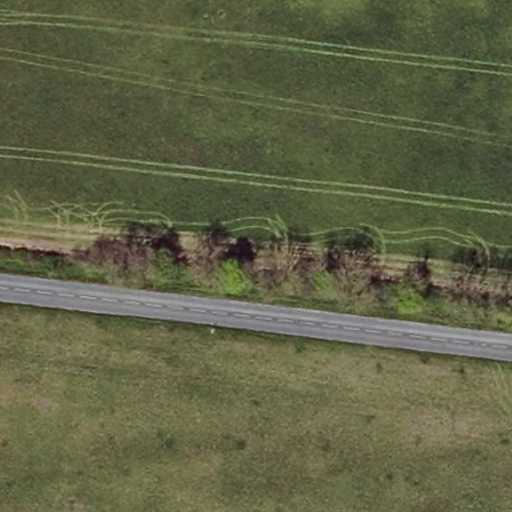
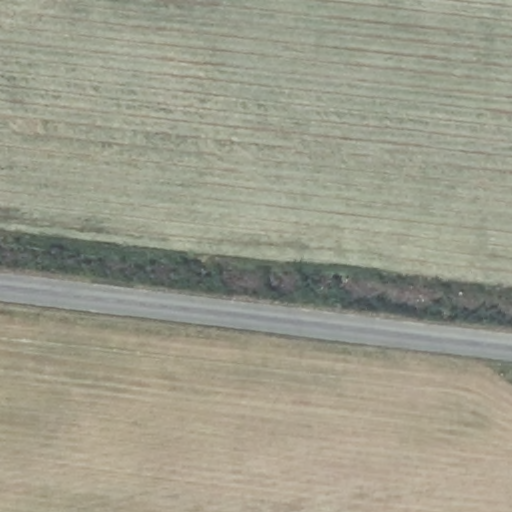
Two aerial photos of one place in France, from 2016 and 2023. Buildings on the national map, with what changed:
[]

